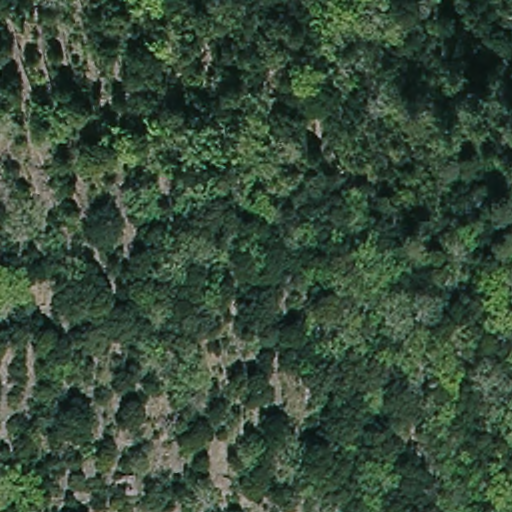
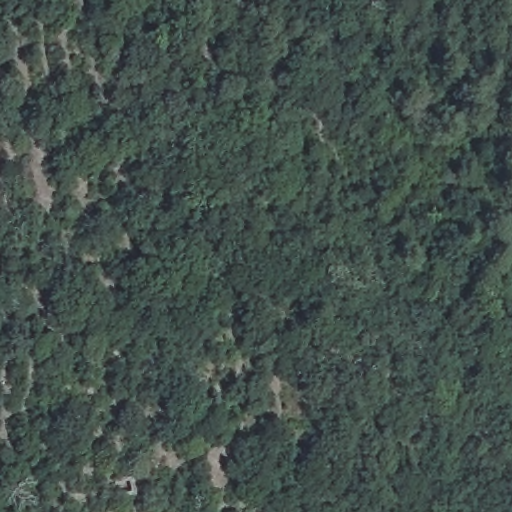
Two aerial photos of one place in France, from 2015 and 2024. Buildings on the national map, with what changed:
[]

